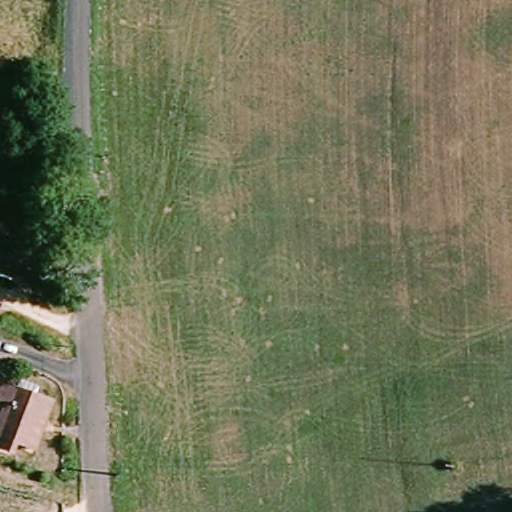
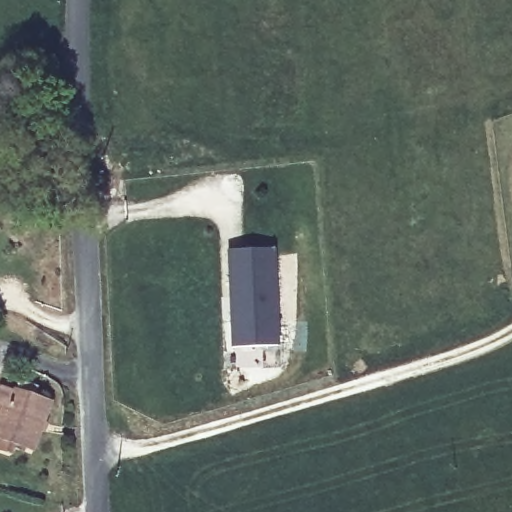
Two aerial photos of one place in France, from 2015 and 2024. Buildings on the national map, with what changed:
new [(276,247),(279,345),(234,346),(231,249),(276,247)]
unchanged [(0,439),(7,414),(0,411),(0,392),(1,387),(16,393),(21,379),(38,387),(36,396),(51,401),(35,450),(15,443),(12,448),(10,454),(0,450),(0,439)]

